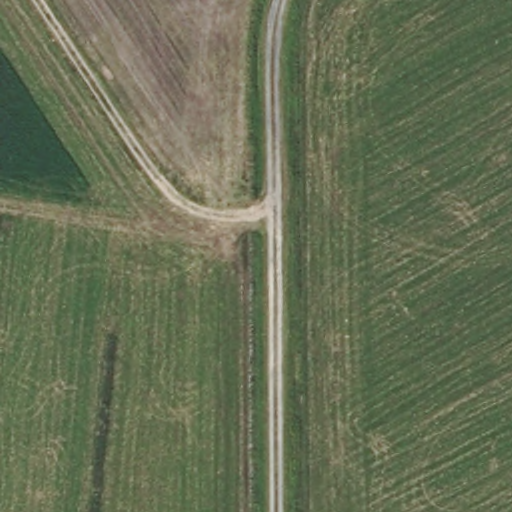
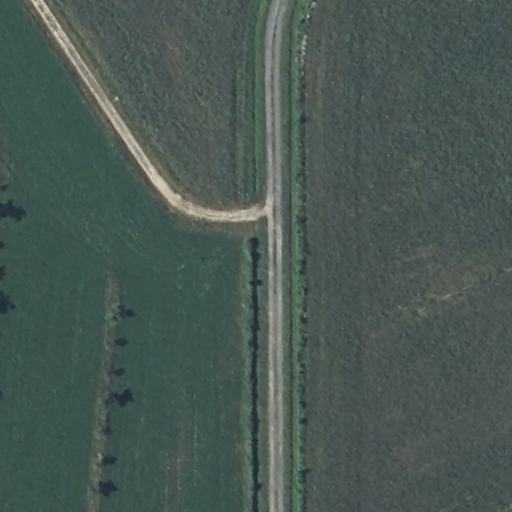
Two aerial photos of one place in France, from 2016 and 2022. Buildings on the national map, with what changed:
[]

